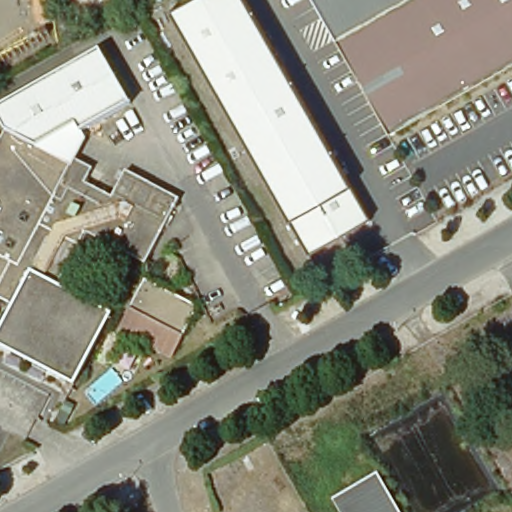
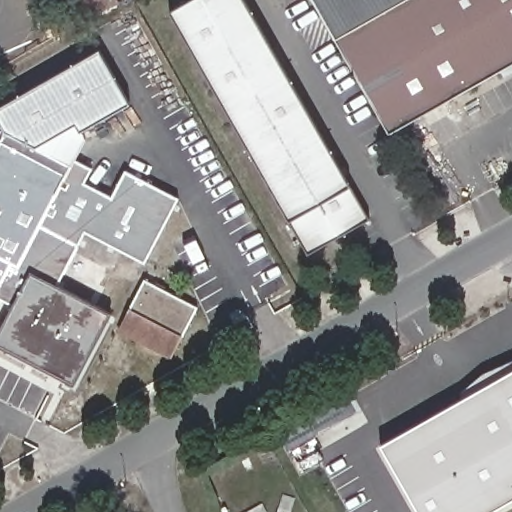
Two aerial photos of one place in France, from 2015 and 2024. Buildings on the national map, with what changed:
new [(119,2),(86,21),(74,0),(118,0),(119,2)]
unchanged [(307,254),(286,219),(169,10),(187,0),(244,0),(350,186),(368,219),(307,254)]
unchanged [(395,2),(336,38),(315,0),(399,0),(395,2)]
unchanged [(512,62),(390,131),(336,38),(395,2),(399,0),(512,0),(512,62)]
unchanged [(95,50),(126,102),(76,130),(71,123),(31,146),(66,164),(69,160),(87,168),(80,182),(107,194),(121,170),(173,196),(140,262),(80,231),(53,283),(108,312),(70,383),(0,347),(0,320),(9,303),(0,299),(0,133),(1,130),(0,127),(0,104),(50,74),(61,69),(95,50)]
unchanged [(195,306),(180,336),(127,311),(144,280),(195,306)]
unchanged [(170,360),(115,332),(127,311),(180,336),(170,360)]
new [(413,512),(373,442),(512,364),(512,494),(480,512),(413,512)]
demolished [(371,482),(389,512),(340,512),(335,503),(371,482)]

